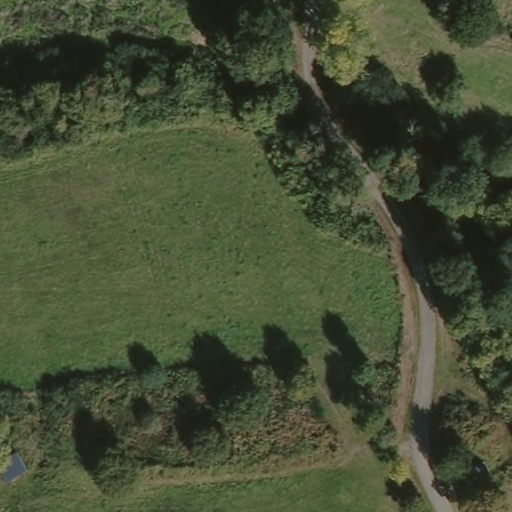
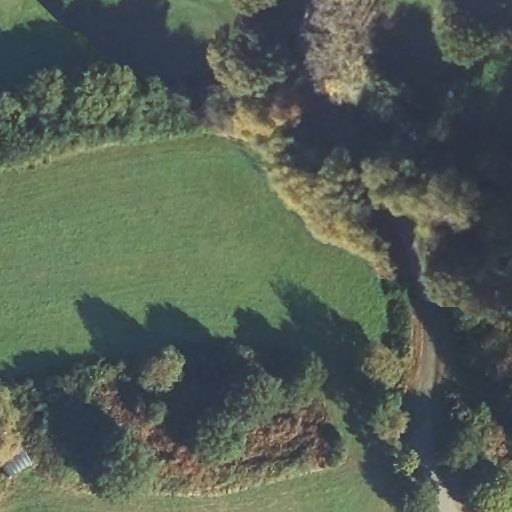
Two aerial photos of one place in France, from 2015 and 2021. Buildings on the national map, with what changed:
unchanged [(485,460),(491,480),(471,487),(465,468),(485,460)]

